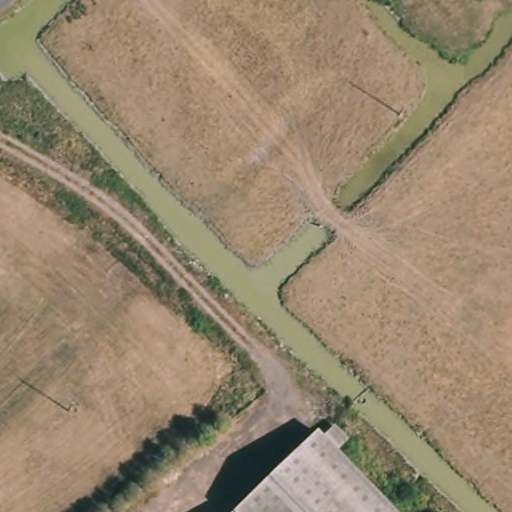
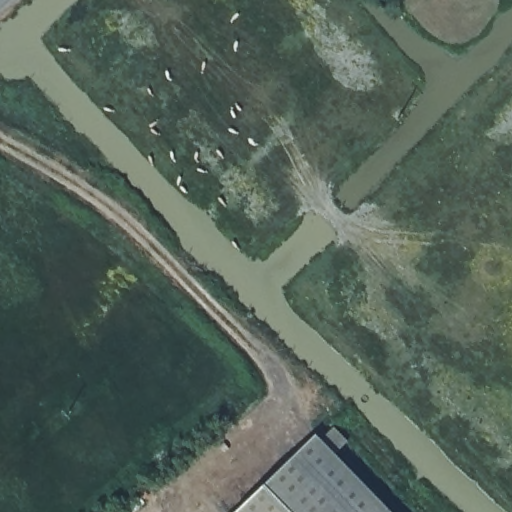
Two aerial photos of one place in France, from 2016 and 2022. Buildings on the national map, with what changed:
unchanged [(317,432),(394,512),(236,512),(317,432)]

